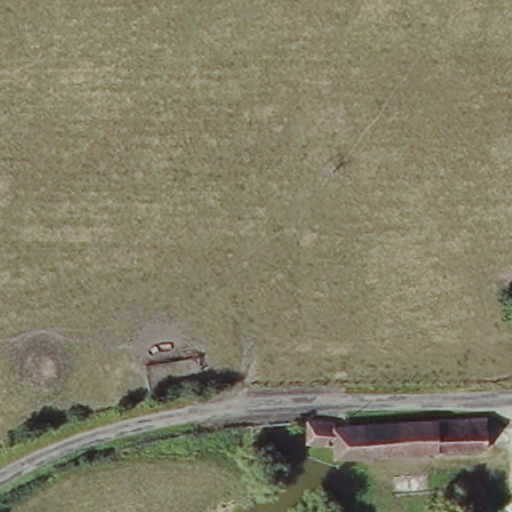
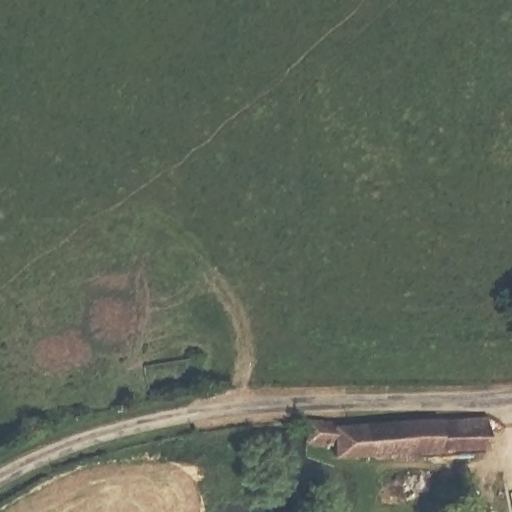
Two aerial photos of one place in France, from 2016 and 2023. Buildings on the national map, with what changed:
unchanged [(311,422),(335,423),(338,433),(466,419),(488,418),(490,448),(342,465),(340,450),(310,454),(310,425),(311,422)]

